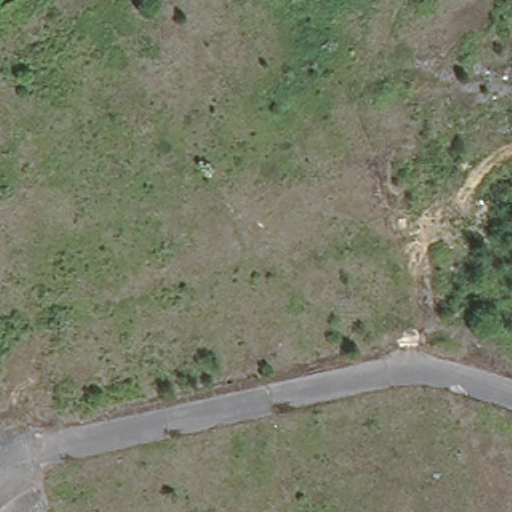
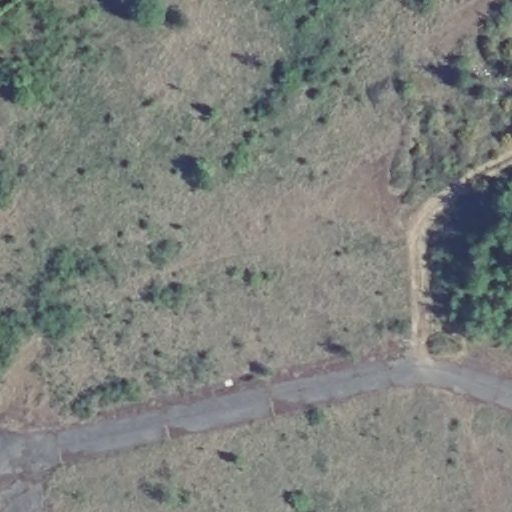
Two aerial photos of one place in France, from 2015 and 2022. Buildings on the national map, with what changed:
[]

